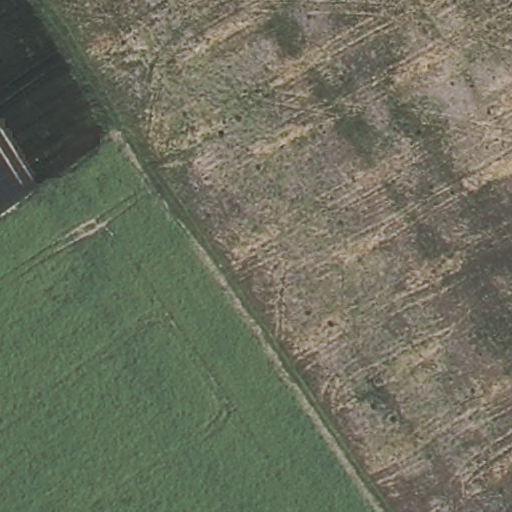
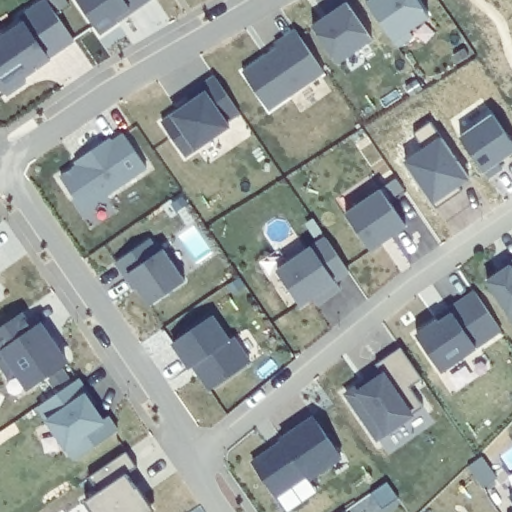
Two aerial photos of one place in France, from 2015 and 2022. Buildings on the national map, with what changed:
new [(104,35),(79,0),(155,0),(135,14),(121,24),(104,35)]
new [(432,19),(412,32),(417,39),(402,49),(368,0),(419,0),(432,19)]
new [(30,85),(10,98),(0,83),(0,50),(3,48),(0,44),(27,25),(23,20),(50,2),(77,43),(52,60),(54,62),(39,72),(27,81),(30,85)]
new [(335,15),(350,4),(376,41),(342,65),(317,28),(326,22),(335,15)]
new [(282,49),(278,45),(298,32),(328,75),(272,112),(246,74),(265,60),(282,49)]
new [(180,111),(192,102),(190,98),(218,79),(243,115),(230,124),(233,128),(188,159),(165,125),(182,114),(180,111)]
new [(493,117),(512,145),(512,154),(482,174),(460,138),(493,117)]
new [(79,164),(85,160),(112,141),(115,145),(127,137),(150,170),(87,213),(64,180),(82,168),(79,164)]
new [(440,140),(469,182),(432,205),(404,162),(440,140)]
new [(385,192),(410,228),(395,239),(394,237),(383,243),(385,245),(375,252),(350,216),(385,192)]
new [(128,279),(119,265),(153,241),(163,255),(167,252),(189,283),(153,308),(140,289),(137,292),(128,279)]
new [(317,297),(304,306),(282,273),(330,241),(352,273),(339,282),(344,290),(327,301),(322,305),(317,297)]
new [(502,272),(512,265),(512,313),(491,282),(503,275),(502,272)]
new [(442,322),(444,323),(456,315),(453,311),(479,293),(505,332),(446,373),(420,337),(442,322)]
new [(36,333),(45,327),(70,364),(32,390),(21,373),(12,379),(0,361),(0,358),(7,353),(0,342),(0,333),(25,316),(36,333)]
new [(195,371),(177,345),(215,318),(232,343),(237,340),(253,365),(214,392),(203,377),(197,368),(195,371)]
new [(385,372),(380,366),(405,349),(427,381),(415,390),(428,408),(382,441),(350,396),(372,381),(385,372)]
new [(93,397),(100,407),(97,408),(107,422),(112,419),(122,433),(79,463),(42,409),(82,381),(93,397)]
new [(287,444),(285,442),(318,419),(345,458),(313,481),(310,477),(280,498),(257,465),(275,452),(287,444)]
new [(95,512),(89,503),(103,495),(92,480),(130,453),(141,469),(131,477),(140,490),(142,488),(158,512),(95,512)]

